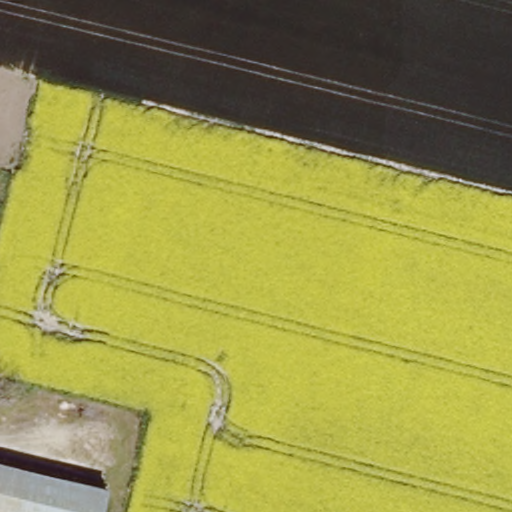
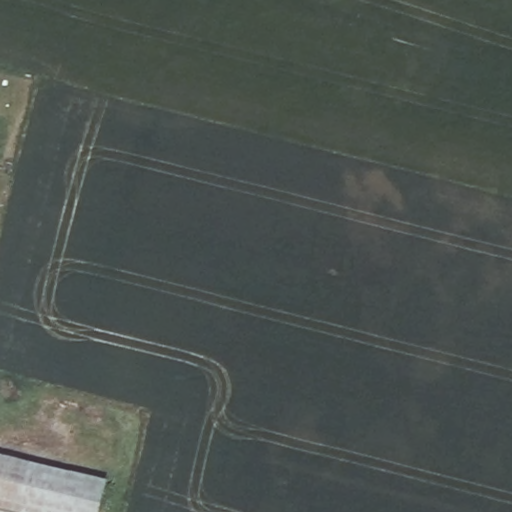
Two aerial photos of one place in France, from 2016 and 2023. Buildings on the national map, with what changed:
unchanged [(0,378),(0,372),(2,372),(0,378)]
unchanged [(108,485),(100,512),(0,512),(0,458),(108,485)]

